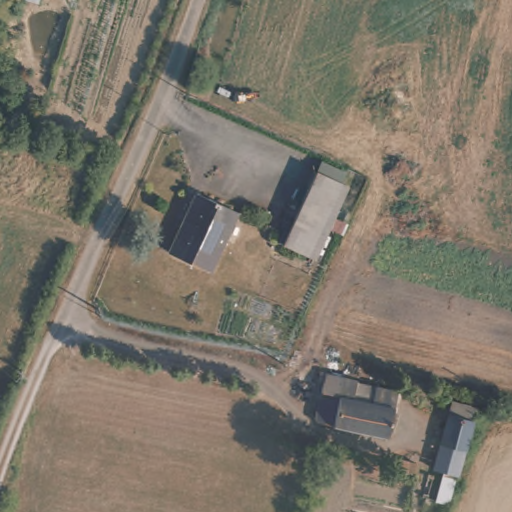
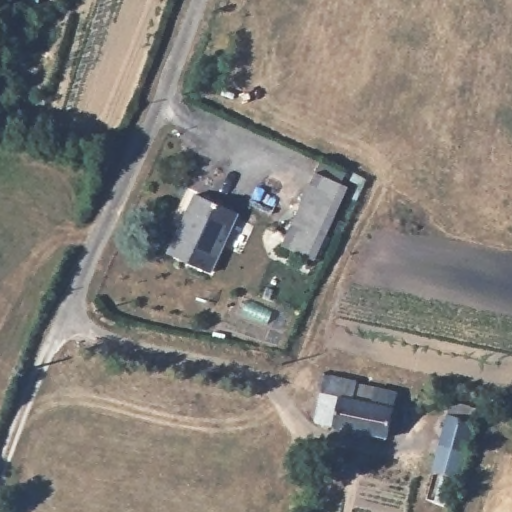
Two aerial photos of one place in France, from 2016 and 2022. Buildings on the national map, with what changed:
unchanged [(348,183),(319,258),(285,244),(314,170),(348,183)]
unchanged [(238,210),(212,273),(169,255),(196,193),(238,210)]
unchanged [(392,387),(390,404),(396,405),(392,437),(335,428),(339,399),(319,396),(322,375),(392,387)]
unchanged [(481,396),(462,472),(459,491),(441,487),(445,468),(439,466),(456,391),(481,396)]

